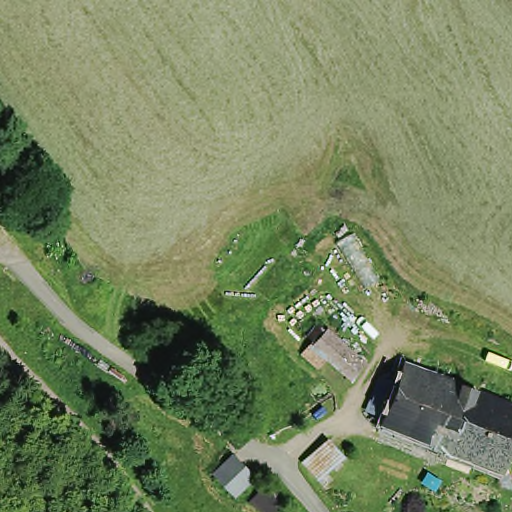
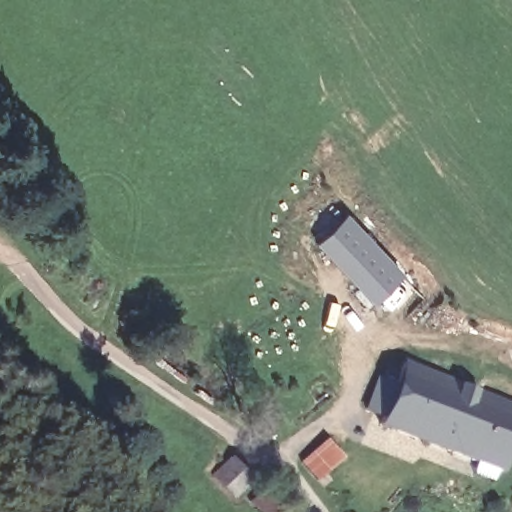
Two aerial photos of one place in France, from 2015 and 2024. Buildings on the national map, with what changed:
new [(349,217),(405,279),(374,306),(320,245),(349,217)]
demolished [(364,370),(345,391),(305,353),(324,333),(364,370)]
unchanged [(500,473),(379,428),(382,419),(365,412),(379,376),(396,382),(402,367),(512,408),(512,441),(500,473)]
unchanged [(317,485),(302,468),(325,446),(341,463),(317,485)]
unchanged [(252,483),(234,501),(214,481),(232,463),(252,483)]

